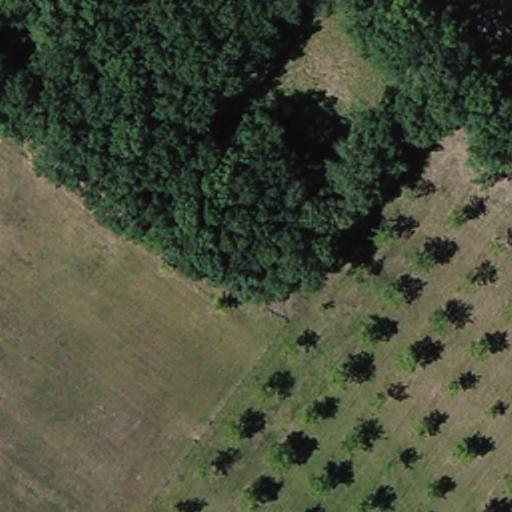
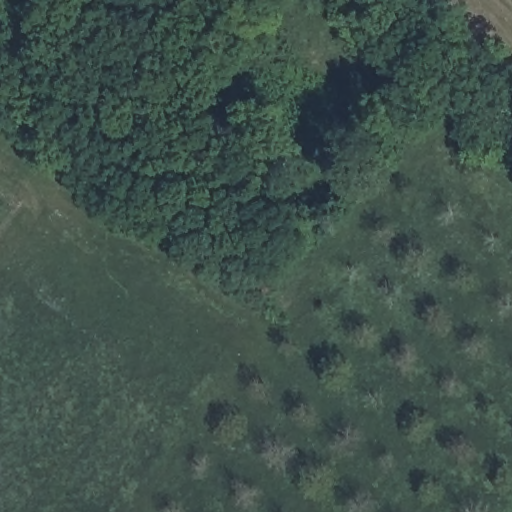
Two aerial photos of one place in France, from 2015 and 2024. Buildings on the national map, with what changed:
[]

